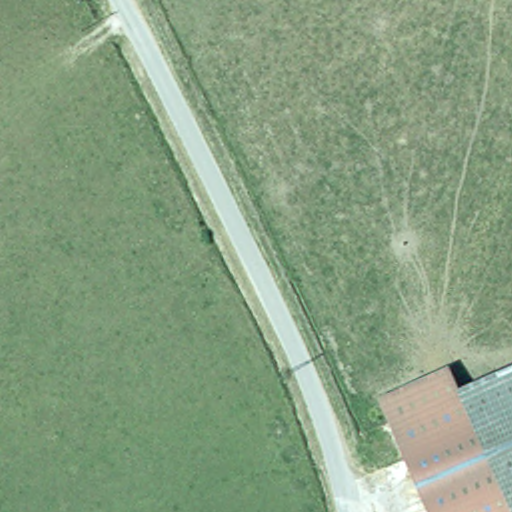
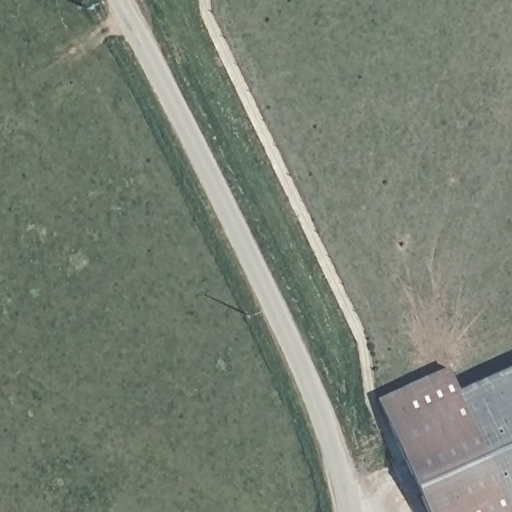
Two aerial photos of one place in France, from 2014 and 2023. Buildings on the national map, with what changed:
unchanged [(509,512),(453,383),(512,357),(512,510),(509,512)]
unchanged [(428,512),(378,397),(444,367),(453,383),(509,512),(428,512)]

